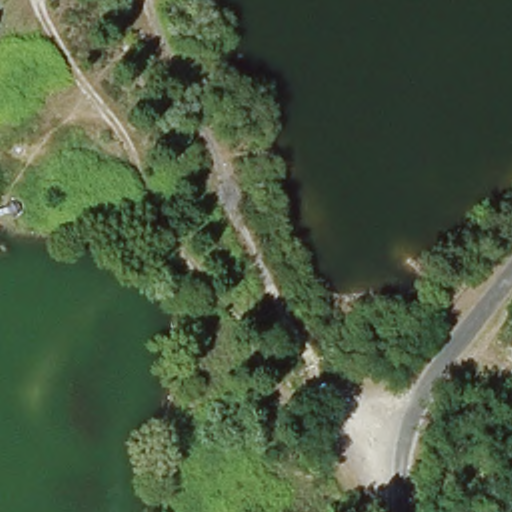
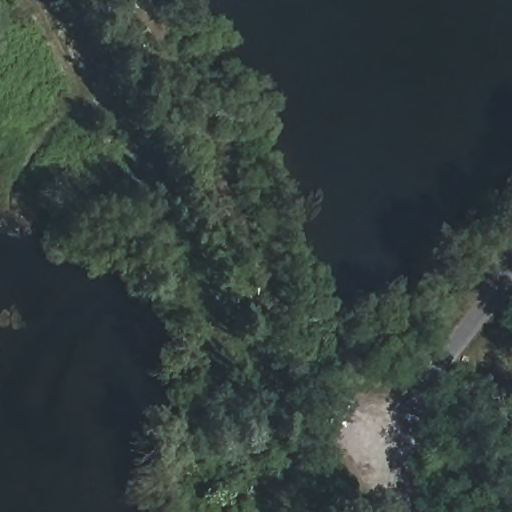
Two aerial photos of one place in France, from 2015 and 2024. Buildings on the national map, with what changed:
[]

